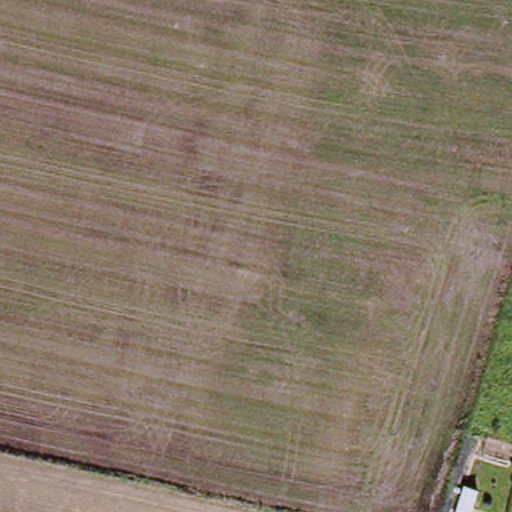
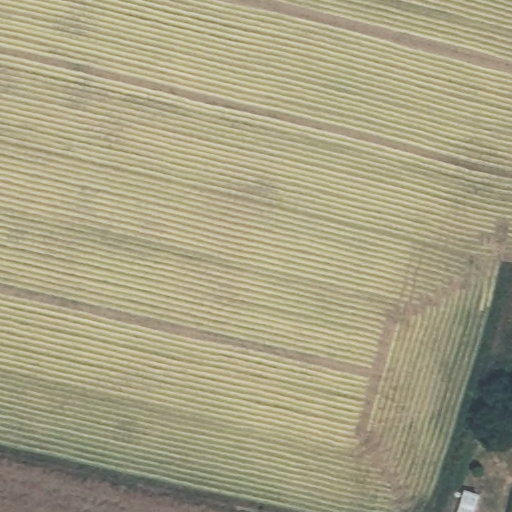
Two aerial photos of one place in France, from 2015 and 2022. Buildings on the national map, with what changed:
unchanged [(483,512),(467,512),(471,501),(485,506),(483,512)]

